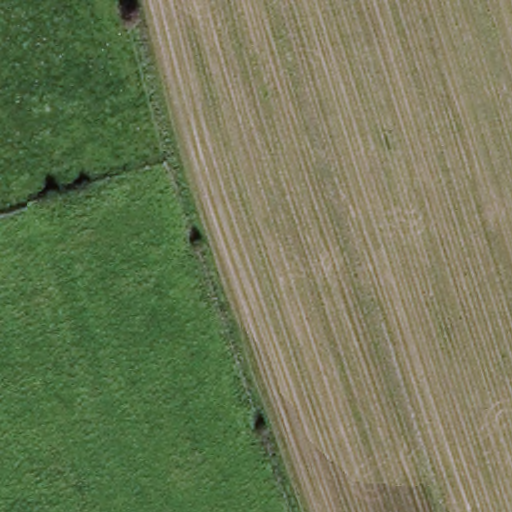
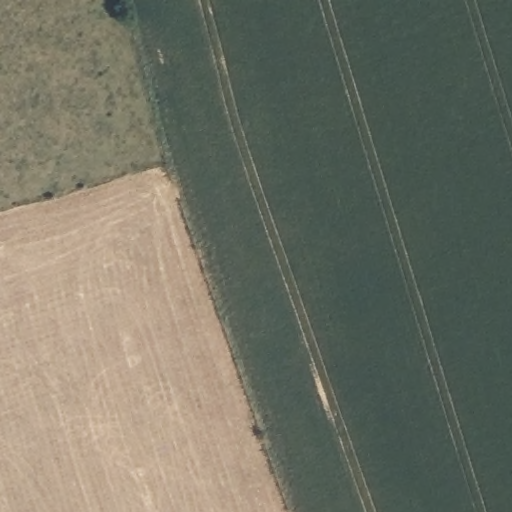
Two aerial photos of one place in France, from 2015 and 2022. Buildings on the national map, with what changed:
[]

